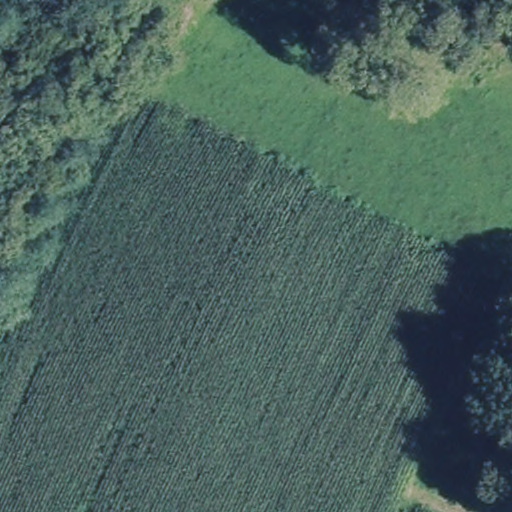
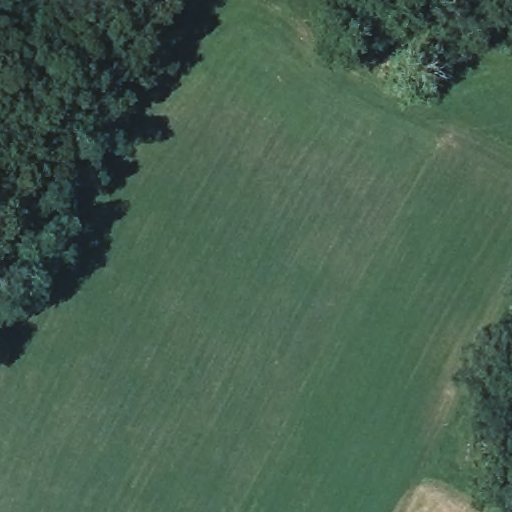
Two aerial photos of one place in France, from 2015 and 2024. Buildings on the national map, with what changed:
[]

